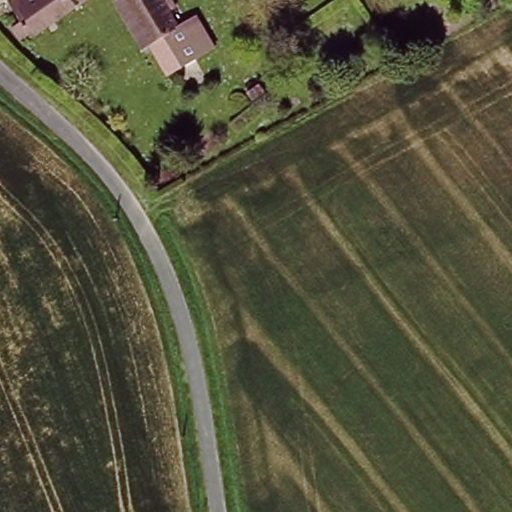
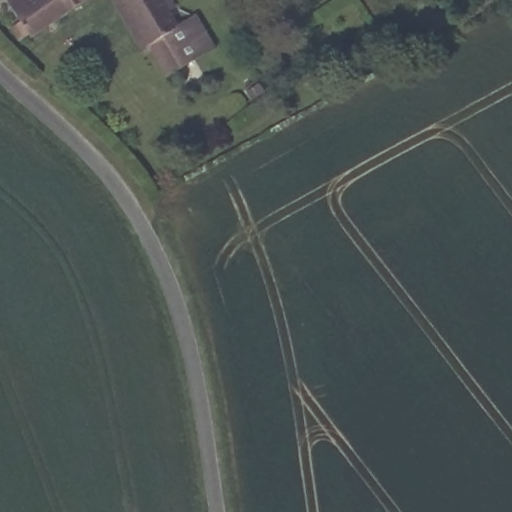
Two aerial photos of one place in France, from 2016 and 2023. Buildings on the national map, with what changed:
unchanged [(31,32),(28,30),(20,34),(13,22),(19,17),(11,0),(85,0),(31,32)]
unchanged [(180,29),(198,19),(214,46),(173,73),(125,0),(162,0),(180,29)]

